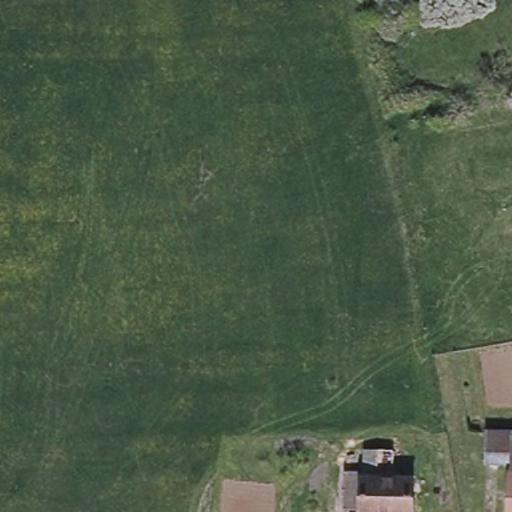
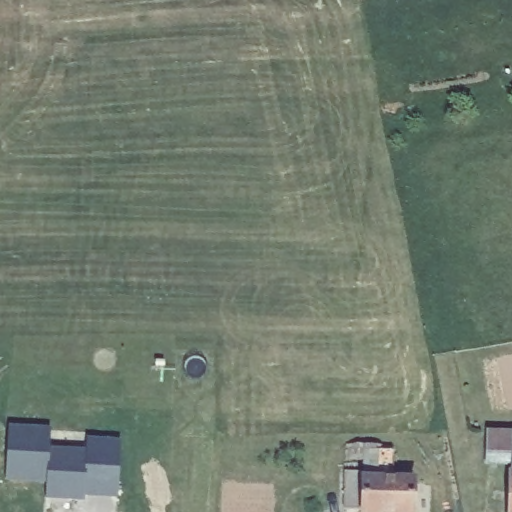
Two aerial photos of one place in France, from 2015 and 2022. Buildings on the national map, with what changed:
new [(118,500),(85,497),(85,503),(45,501),(46,485),(6,483),(8,426),(50,428),(49,448),(86,449),(87,439),(120,441),(118,500)]
unchanged [(512,474),(507,474),(507,462),(482,461),(483,433),(512,434),(512,474)]
unchanged [(364,473),(365,450),(395,450),(395,480),(414,481),(414,493),(417,493),(416,498),(414,498),(413,512),(362,512),(345,511),(345,472),(364,473)]
unchanged [(507,474),(512,474),(512,512),(506,512),(507,474)]

